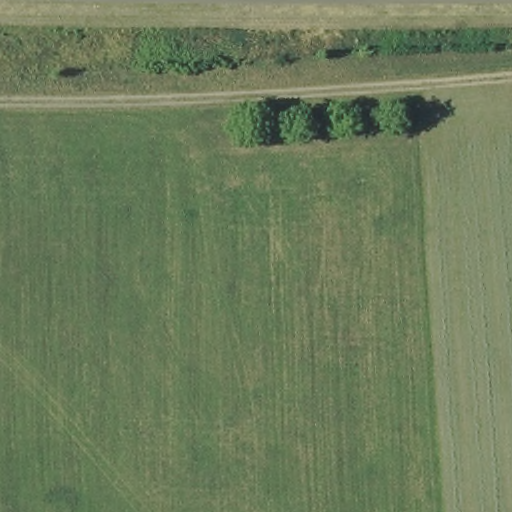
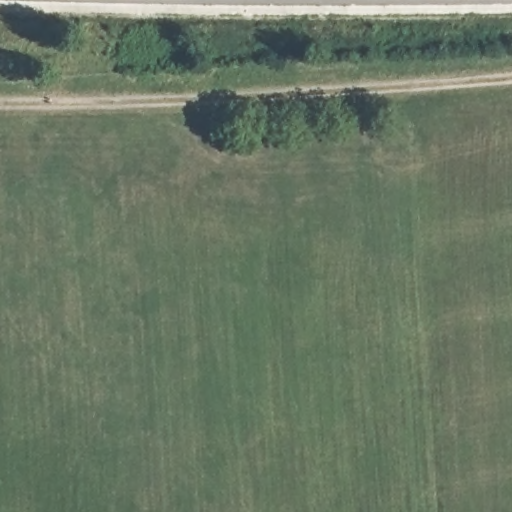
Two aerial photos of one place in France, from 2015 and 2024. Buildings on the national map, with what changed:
[]

